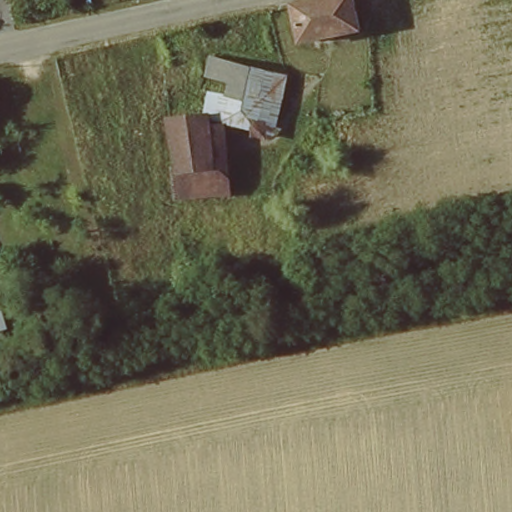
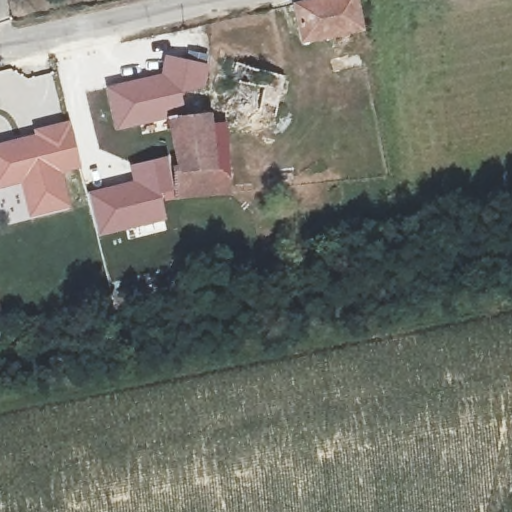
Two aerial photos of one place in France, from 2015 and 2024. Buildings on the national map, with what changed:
unchanged [(327,0),(351,0),(357,28),(301,41),(296,7),(318,2),(327,0)]
unchanged [(263,129),(213,121),(218,169),(184,172),(176,121),(210,116),(215,94),(231,98),(236,83),(210,76),(215,59),(241,66),(289,79),(279,119),(275,138),(263,129)]
new [(109,89),(173,75),(176,61),(206,66),(201,89),(178,95),(183,114),(118,129),(109,89)]
new [(60,170),(68,204),(31,213),(22,180),(0,185),(0,144),(36,135),(35,130),(69,121),(80,165),(60,170)]
new [(140,182),(137,166),(165,158),(172,189),(157,194),(163,218),(97,234),(87,195),(140,182)]
unchanged [(218,169),(221,196),(181,199),(177,172),(184,172),(218,169)]
unchanged [(5,331),(0,332),(0,316),(5,331)]

